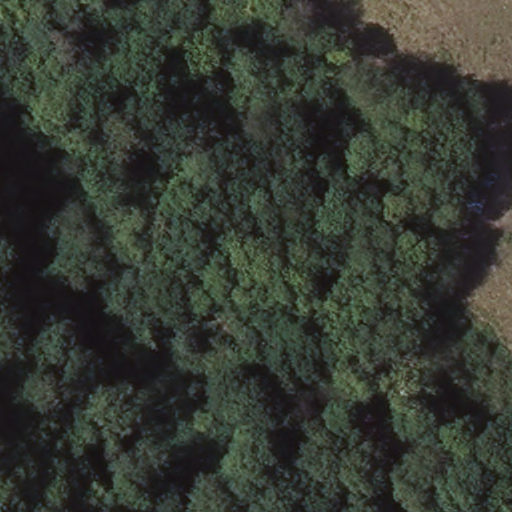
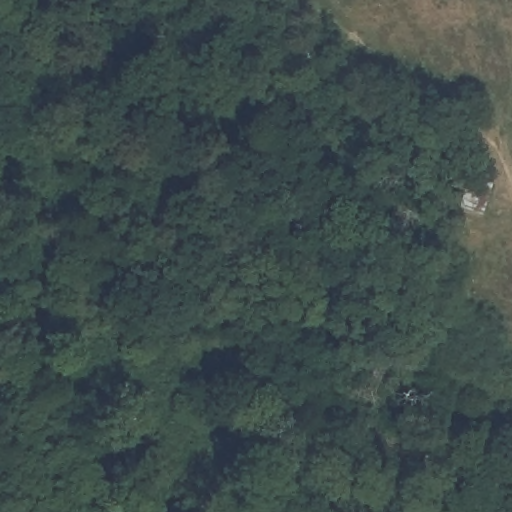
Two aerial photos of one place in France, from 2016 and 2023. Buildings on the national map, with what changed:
unchanged [(481,214),(456,208),(466,174),(492,180),(481,214)]

